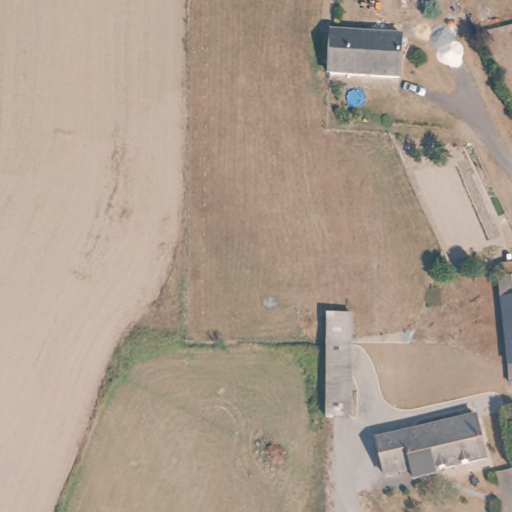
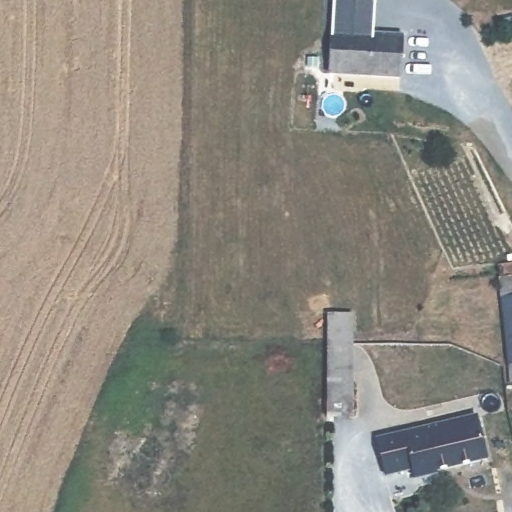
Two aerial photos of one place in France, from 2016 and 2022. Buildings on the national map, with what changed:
new [(374,0),(372,34),(330,31),(332,0),(374,0)]
unchanged [(401,35),(399,80),(327,76),(330,31),(401,35)]
unchanged [(512,241),(512,243),(511,242),(512,241)]
unchanged [(512,273),(512,360),(503,273),(512,273)]
unchanged [(356,324),(355,403),(325,402),(326,324),(356,324)]
unchanged [(474,418),(478,433),(486,465),(471,468),(471,471),(448,476),(447,470),(434,473),(435,477),(412,482),(411,476),(405,472),(383,477),(375,440),(447,423),(474,418)]

